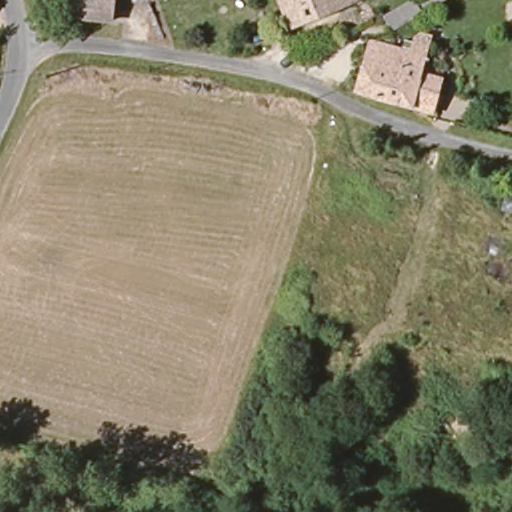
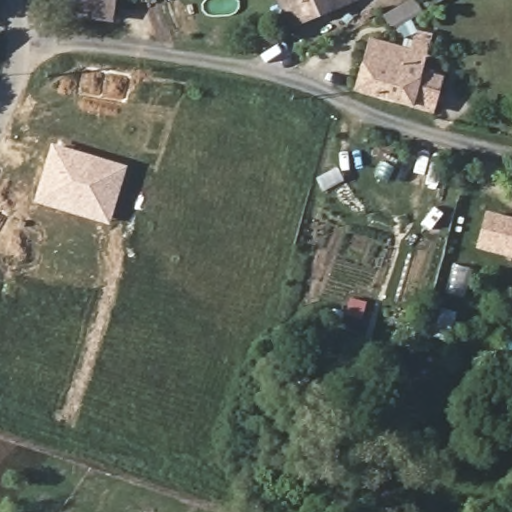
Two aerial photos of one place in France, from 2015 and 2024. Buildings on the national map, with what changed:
unchanged [(81,14),(83,0),(115,0),(111,19),(81,14)]
unchanged [(300,30),(289,0),(362,0),(300,30)]
new [(422,14),(389,28),(383,13),(412,0),(416,0),(422,14)]
unchanged [(366,95),(367,92),(381,42),(420,52),(423,41),(437,44),(420,107),(366,95)]
new [(33,203),(51,142),(127,166),(109,226),(33,203)]
new [(512,258),(476,248),(486,211),(512,218),(512,258)]

